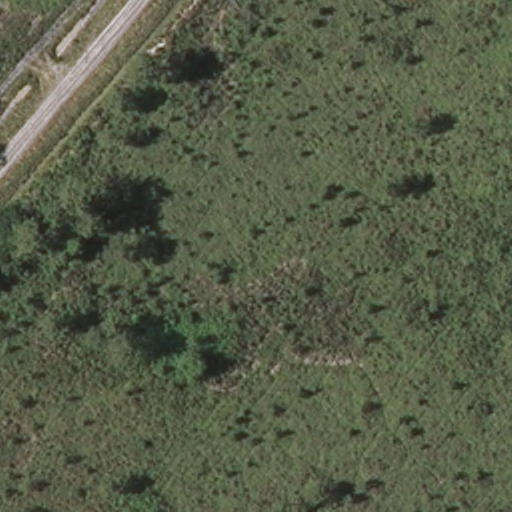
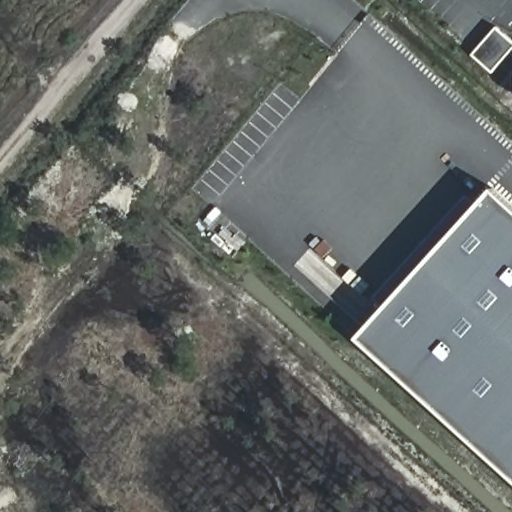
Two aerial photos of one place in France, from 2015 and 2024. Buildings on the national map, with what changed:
new [(496,29),(512,42),(512,47),(492,70),(475,54),(496,29)]
new [(495,186),(512,202),(512,477),(356,337),(495,186)]

